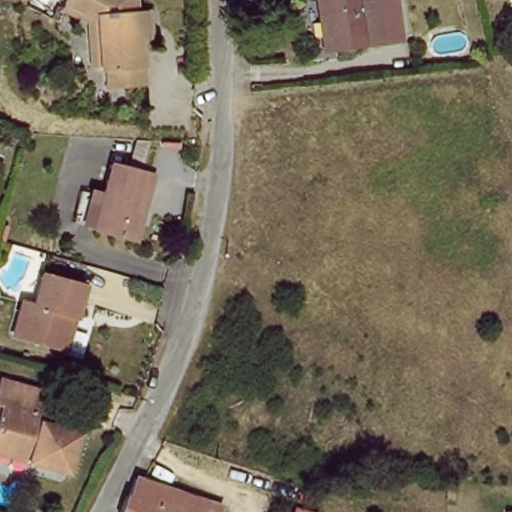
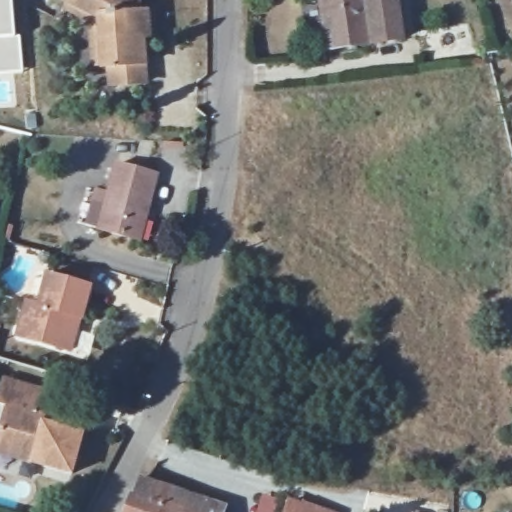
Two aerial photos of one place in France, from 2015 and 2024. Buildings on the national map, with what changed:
new [(0,38),(0,0),(12,0),(15,35),(0,38)]
unchanged [(60,2),(62,0),(133,0),(134,13),(139,13),(142,38),(138,37),(142,83),(117,86),(116,68),(98,71),(93,17),(60,2)]
unchanged [(365,0),(365,4),(387,2),(392,30),(326,41),(318,0),(365,0)]
new [(15,35),(20,35),(23,72),(0,74),(0,38),(15,35)]
unchanged [(142,240),(102,229),(102,228),(80,223),(90,187),(112,193),(119,164),(160,175),(142,240)]
unchanged [(16,333),(25,303),(37,306),(45,275),(87,287),(79,319),(72,317),(70,329),(74,331),(68,351),(35,342),(35,339),(16,333)]
unchanged [(5,406),(0,405),(0,388),(2,381),(47,393),(41,415),(42,416),(57,420),(55,426),(80,433),(69,474),(28,463),(28,461),(0,454),(0,424),(5,406)]
unchanged [(140,480),(208,504),(206,512),(127,512),(140,480)]
new [(286,506),(301,511),(302,507),(319,512),(284,512),(286,506)]

